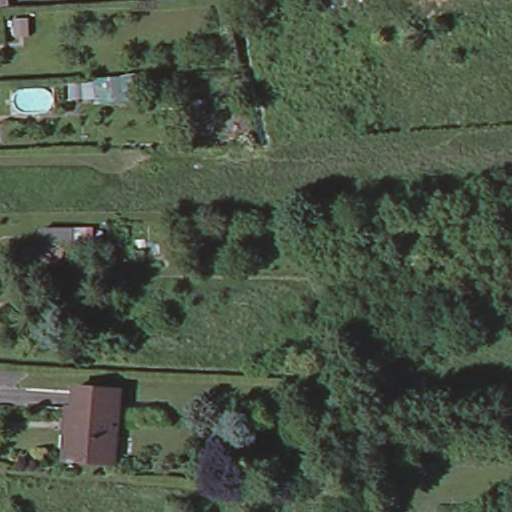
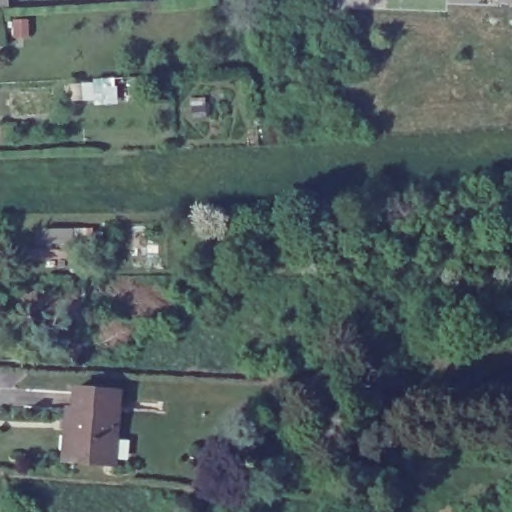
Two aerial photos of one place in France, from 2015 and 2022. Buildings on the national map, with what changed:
unchanged [(0,6),(0,0),(7,0),(8,5),(0,6)]
unchanged [(92,81),(94,97),(72,97),(72,82),(92,81)]
unchanged [(70,227),(70,241),(48,241),(47,227),(70,227)]
unchanged [(72,408),(74,388),(118,392),(111,462),(62,457),(67,408),(72,408)]

